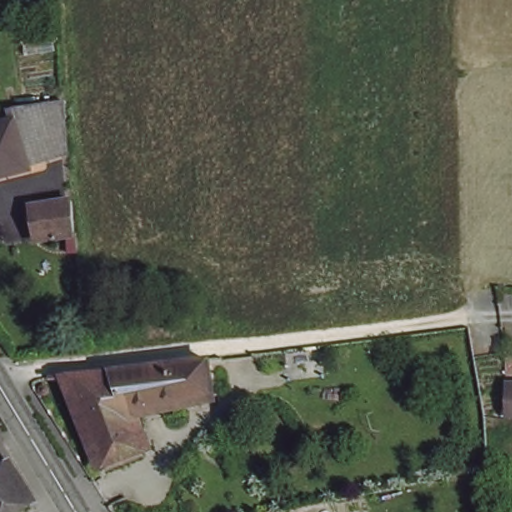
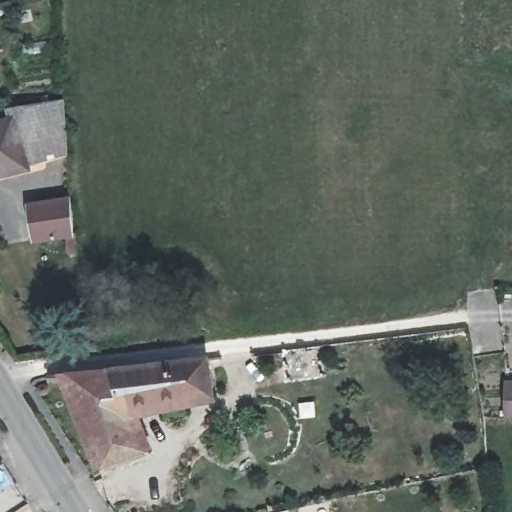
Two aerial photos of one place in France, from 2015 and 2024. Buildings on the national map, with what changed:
unchanged [(32,114),(70,109),(73,165),(35,167),(35,172),(0,180),(0,129),(34,121),(32,114)]
unchanged [(39,238),(37,205),(72,204),(73,236),(39,238)]
unchanged [(214,364),(217,395),(206,397),(119,411),(135,458),(100,472),(63,383),(85,380),(107,377),(201,366),(214,364)]
unchanged [(512,384),(512,415),(505,414),(507,384),(512,384)]
unchanged [(29,509),(23,512),(0,512),(0,473),(7,470),(29,509)]

